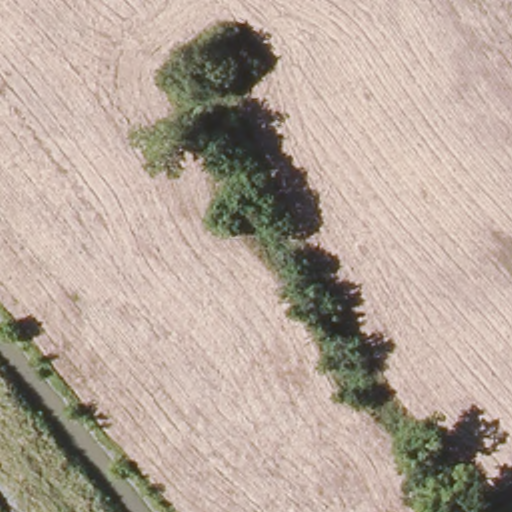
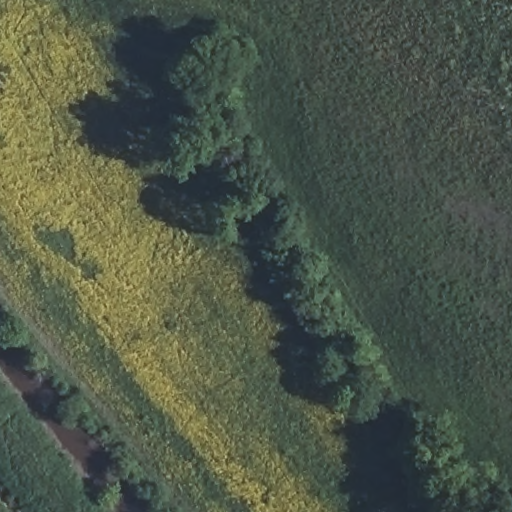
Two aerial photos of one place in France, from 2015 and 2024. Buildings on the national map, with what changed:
[]

